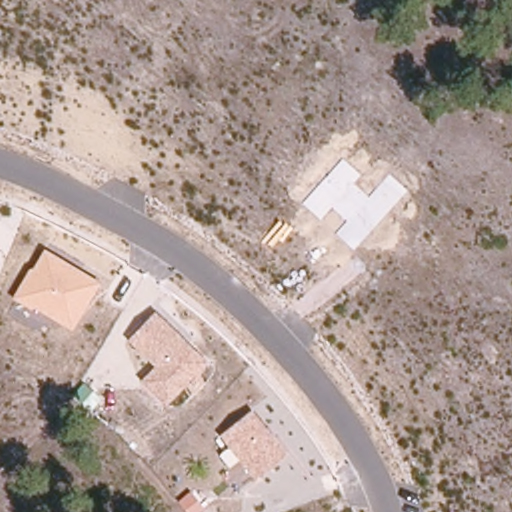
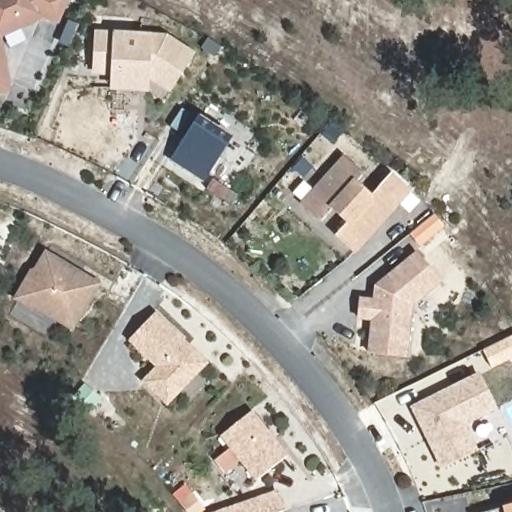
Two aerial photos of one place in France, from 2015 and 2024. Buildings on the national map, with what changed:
new [(69,0),(60,26),(43,20),(4,39),(12,92),(0,95),(0,0),(69,0)]
new [(101,31),(171,35),(197,52),(174,87),(152,73),(151,88),(117,85),(118,71),(99,70),(101,31)]
new [(172,162),(199,117),(234,136),(205,183),(172,162)]
unchanged [(354,249),(337,234),(348,221),(333,207),(322,220),(303,203),(344,159),(362,174),(354,183),(369,197),(390,174),(408,190),(354,249)]
unchanged [(72,331),(36,310),(34,312),(13,299),(31,267),(33,268),(45,249),(99,282),(72,331)]
new [(369,356),(372,322),(359,322),(360,298),(373,300),(374,287),(417,252),(444,283),(414,307),(410,359),(369,356)]
unchanged [(168,405),(141,379),(154,366),(128,340),(154,313),(207,365),(168,405)]
new [(480,372),(498,411),(467,426),(480,452),(442,469),(412,408),(480,372)]
unchanged [(256,480),(222,436),(251,411),(288,453),(256,480)]
new [(278,490),(285,511),(284,512),(216,512),(278,490)]
new [(512,512),(480,512),(480,511),(512,503),(512,512)]

